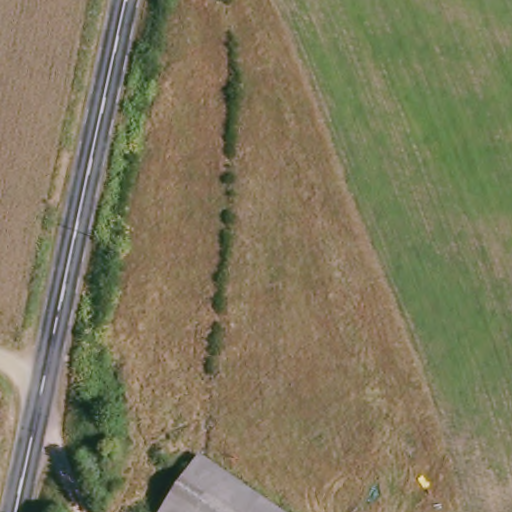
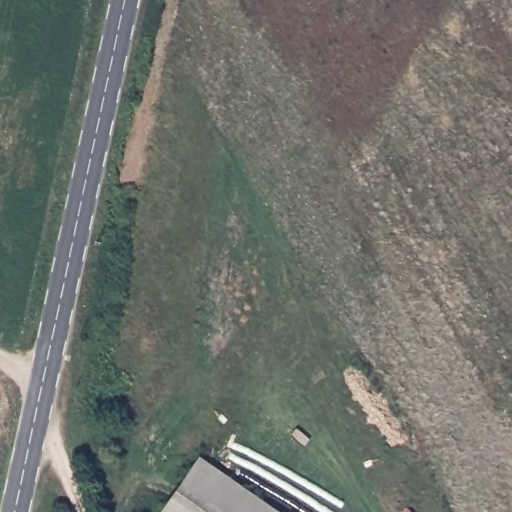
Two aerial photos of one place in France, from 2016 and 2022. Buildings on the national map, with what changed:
unchanged [(202,456),(283,512),(167,512),(202,456)]

